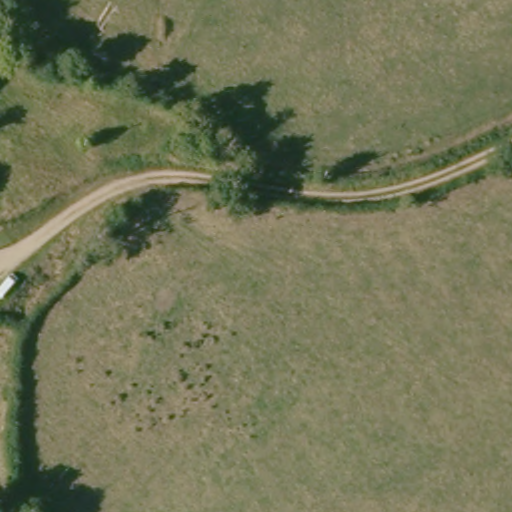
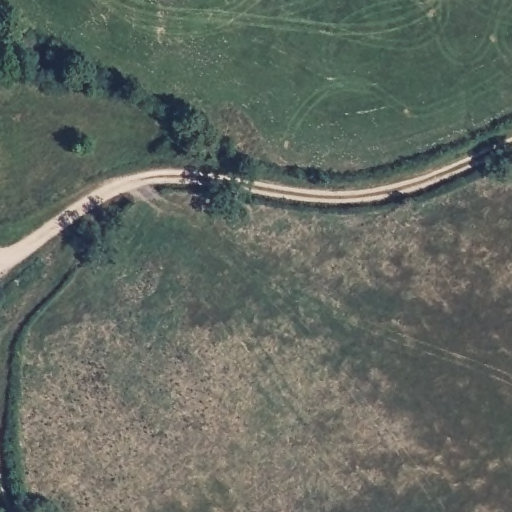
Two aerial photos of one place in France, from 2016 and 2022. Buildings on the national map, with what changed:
[]

